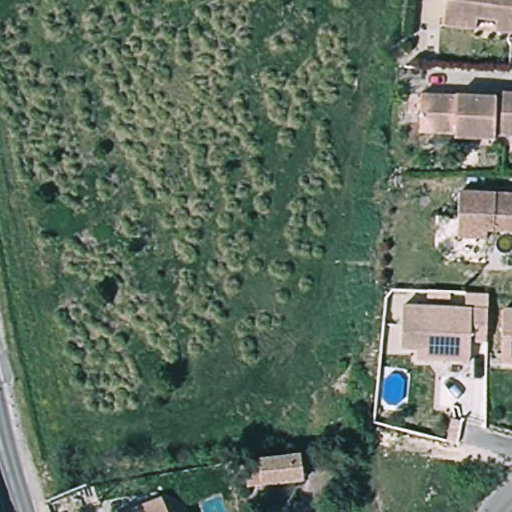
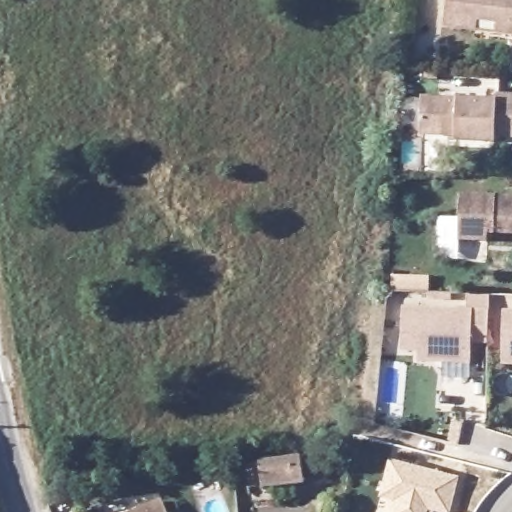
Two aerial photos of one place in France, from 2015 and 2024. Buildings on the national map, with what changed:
unchanged [(449,0),(512,0),(512,41),(481,40),(448,40),(449,0)]
unchanged [(499,98),(512,98),(512,141),(500,141),(499,145),(460,145),(460,140),(425,140),(425,101),(499,103),(499,98)]
unchanged [(458,241),(459,196),(512,197),(512,235),(486,234),(486,242),(486,252),(458,251),(458,241)]
unchanged [(417,346),(401,346),(402,303),(487,305),(485,336),(470,336),(470,357),(442,356),(417,355),(417,346)]
unchanged [(502,305),(512,306),(512,359),(501,358),(502,305)]
unchanged [(300,456),(302,482),(262,487),(258,461),(300,456)]
new [(380,497),(390,460),(460,476),(452,512),(434,512),(428,510),(428,512),(393,512),(395,502),(380,497)]
unchanged [(167,512),(134,512),(162,501),(167,512)]

